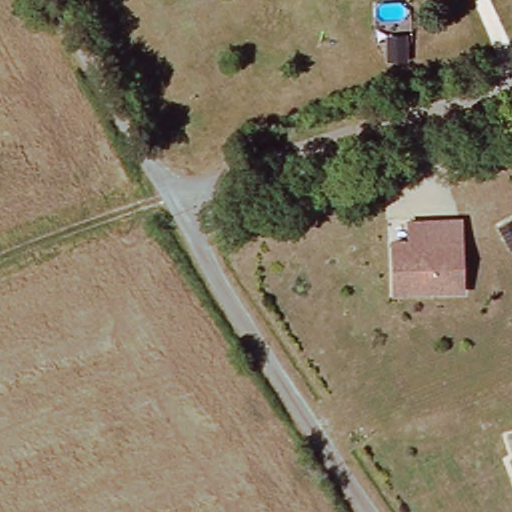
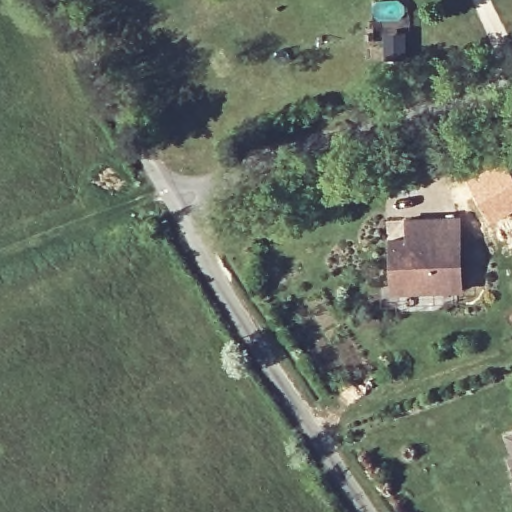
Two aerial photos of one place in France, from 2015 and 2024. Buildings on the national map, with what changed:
new [(506,158),(512,170),(512,213),(493,224),(467,180),(506,158)]
unchanged [(395,294),(393,243),(411,242),(410,223),(427,222),(462,222),(462,241),(463,293),(395,294)]
new [(512,234),(512,237),(511,235),(512,234)]
unchanged [(510,434),(512,433),(512,440),(510,434)]

